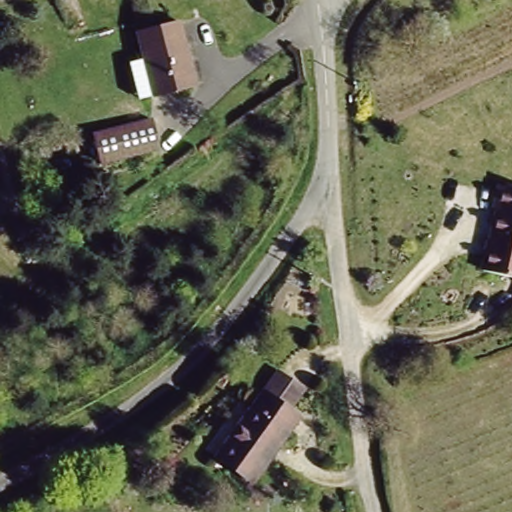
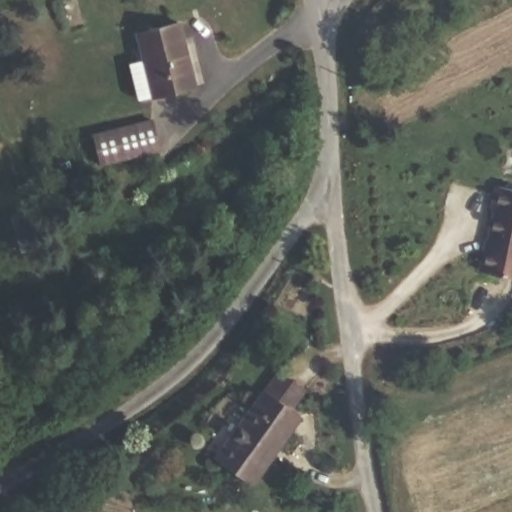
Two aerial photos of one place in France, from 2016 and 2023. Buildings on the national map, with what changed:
unchanged [(138,42),(180,32),(195,95),(153,107),(138,42)]
unchanged [(149,124),(155,145),(112,157),(105,136),(149,124)]
unchanged [(512,190),(512,279),(482,273),(493,212),(489,211),(493,187),(512,190)]
unchanged [(252,483),(217,457),(267,392),(288,362),(308,377),(286,406),(302,417),(252,483)]

